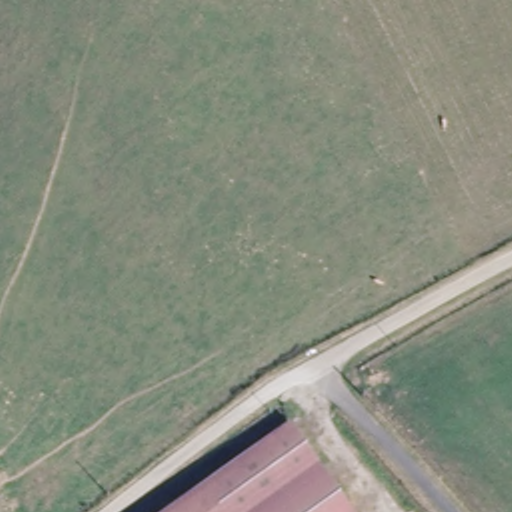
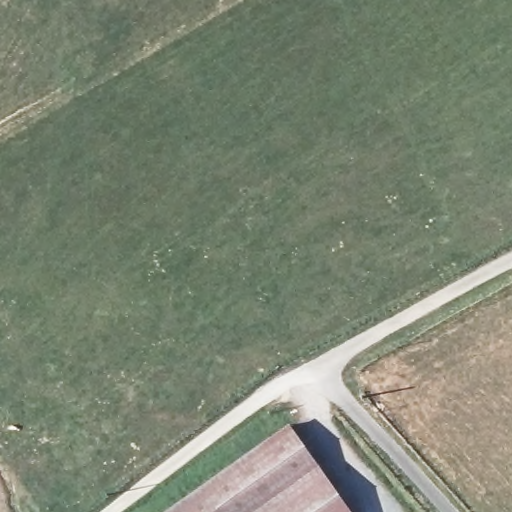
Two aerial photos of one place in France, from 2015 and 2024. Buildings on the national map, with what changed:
unchanged [(356,512),(162,512),(295,421),(356,512)]

